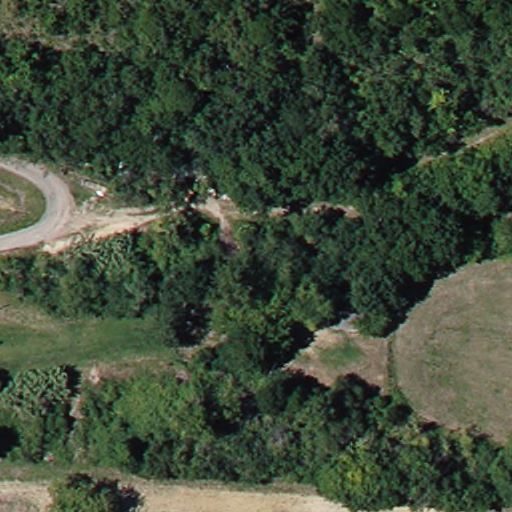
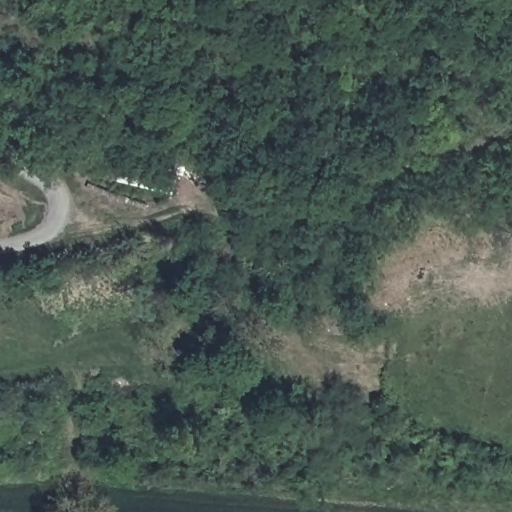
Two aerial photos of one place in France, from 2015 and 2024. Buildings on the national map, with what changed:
unchanged [(319,310),(384,310),(384,335),(319,333),(319,310)]

